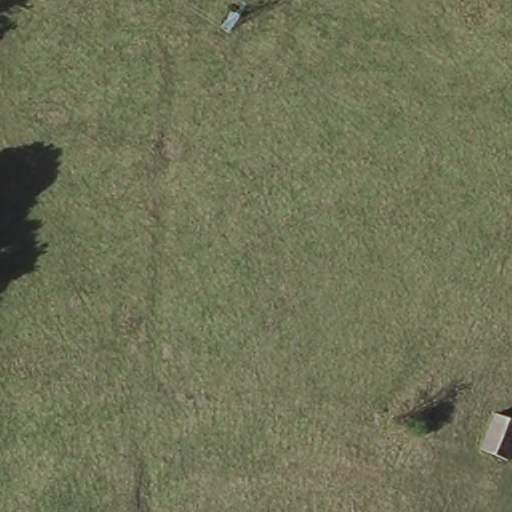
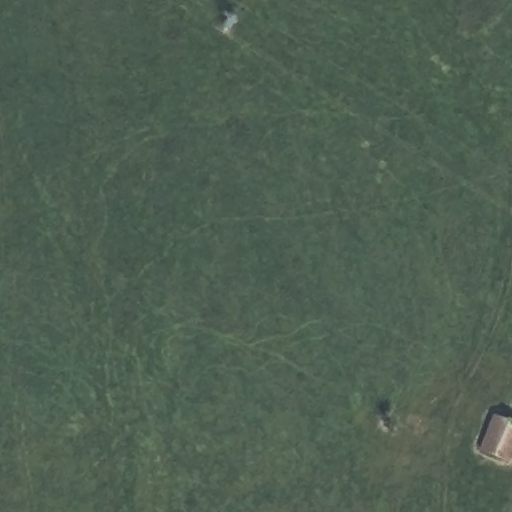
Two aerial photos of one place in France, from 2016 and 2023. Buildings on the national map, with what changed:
unchanged [(502,460),(477,448),(483,436),(493,417),(512,427),(512,441),(502,460)]

